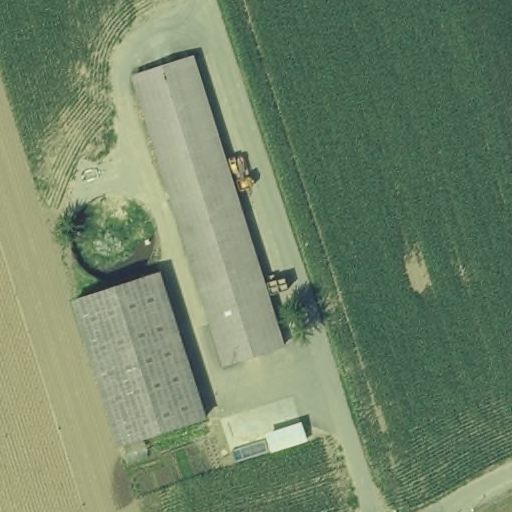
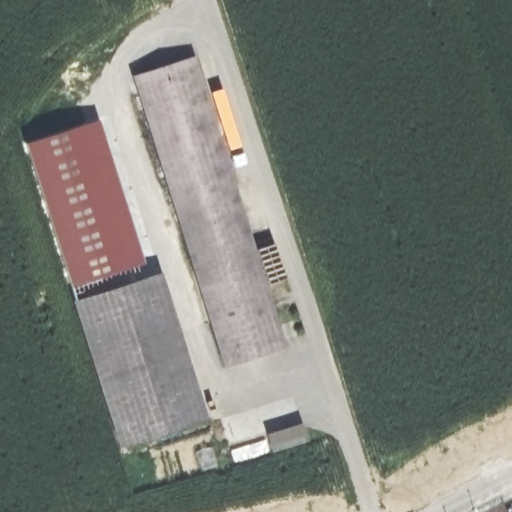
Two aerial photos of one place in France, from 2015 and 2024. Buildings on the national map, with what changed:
unchanged [(286,345),(224,363),(188,248),(136,72),(194,54),(238,197),(286,345)]
new [(77,296),(32,143),(105,122),(149,274),(77,296)]
unchanged [(149,274),(160,271),(206,418),(120,442),(77,296),(149,274)]
new [(302,426),(307,440),(274,450),(270,436),(302,426)]

